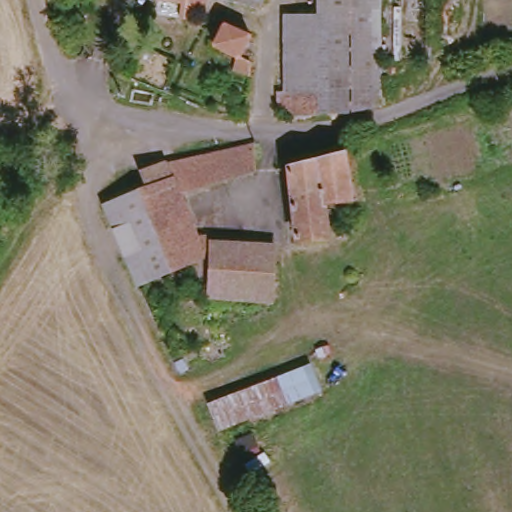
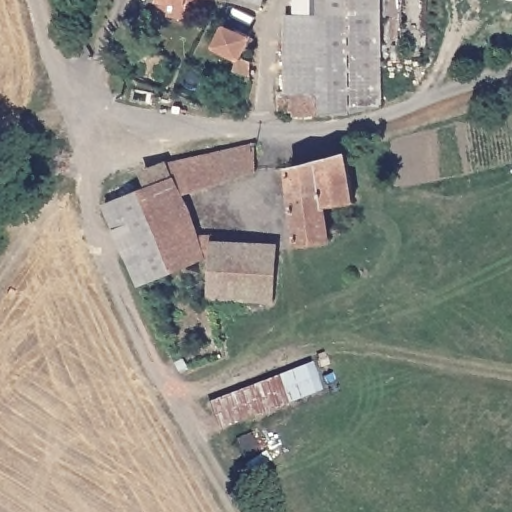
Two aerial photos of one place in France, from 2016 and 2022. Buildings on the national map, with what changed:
unchanged [(173,0),(182,0),(181,1),(173,0)]
unchanged [(237,0),(251,0),(249,3),(237,0)]
unchanged [(285,88),(287,35),(313,35),(313,0),(375,0),(370,105),(313,109),(271,112),(271,89),(285,88)]
unchanged [(247,35),(248,36),(237,57),(248,60),(249,75),(233,68),(232,54),(210,42),(221,24),(247,35)]
unchanged [(246,170),(171,194),(188,236),(204,236),(204,240),(268,247),(263,299),(203,295),(204,252),(131,282),(97,202),(105,200),(103,194),(109,192),(111,197),(119,194),(118,189),(125,186),(127,191),(137,187),(164,177),(157,162),(246,142),(246,170)]
unchanged [(348,200),(319,203),(324,239),(292,242),(286,168),(340,152),(348,200)]
unchanged [(318,389),(215,428),(204,401),(309,360),(318,389)]

